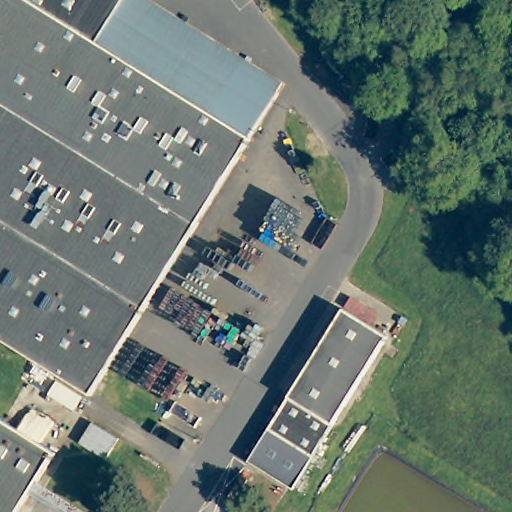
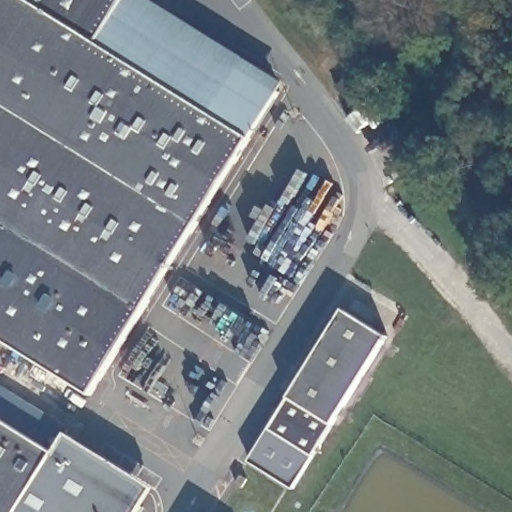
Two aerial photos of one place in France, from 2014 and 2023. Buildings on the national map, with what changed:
unchanged [(114,48),(258,136),(96,395),(0,336),(0,0),(129,0),(103,41),(114,48)]
unchanged [(258,136),(114,48),(103,41),(129,0),(139,0),(285,91),(258,136)]
unchanged [(362,99),(352,107),(335,86),(345,78),(362,99)]
unchanged [(344,309),(389,337),(293,492),(248,464),(344,309)]
unchanged [(24,512),(0,512),(0,413),(61,452),(24,512)]
new [(61,452),(73,437),(153,488),(138,512),(24,512),(61,452)]
unchanged [(249,478),(243,488),(234,483),(240,473),(249,478)]

